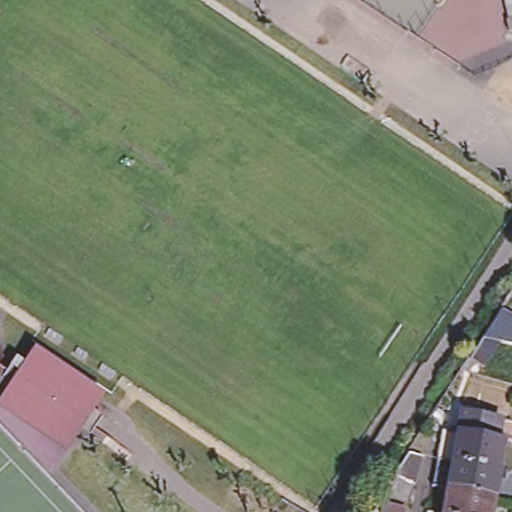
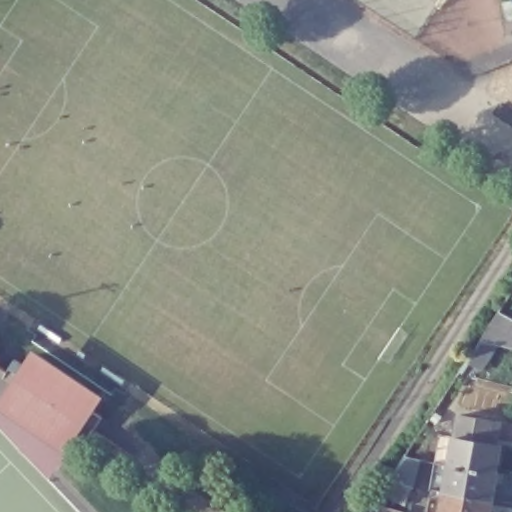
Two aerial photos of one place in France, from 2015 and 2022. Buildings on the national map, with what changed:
unchanged [(505,27),(507,27),(504,9),(512,7),(512,38),(507,39),(505,27)]
unchanged [(512,44),(512,49),(505,50),(504,43),(512,41),(512,44)]
unchanged [(484,338),(484,337),(503,308),(512,314),(512,344),(501,341),(485,367),(470,358),(484,338)]
unchanged [(10,388),(9,390),(0,385),(0,375),(5,367),(19,376),(27,363),(90,402),(80,417),(92,425),(84,438),(72,430),(73,429),(10,388)]
unchanged [(9,390),(10,388),(73,429),(72,430),(60,450),(5,397),(4,397),(9,390)]
unchanged [(60,450),(55,457),(0,422),(0,403),(4,397),(5,397),(60,450)]
unchanged [(444,509),(449,481),(440,481),(435,481),(437,467),(439,453),(444,425),(459,427),(463,406),(500,412),(496,434),(505,435),(500,463),(502,464),(497,490),(492,512),(430,512),(431,507),(444,509)]
unchanged [(415,488),(417,493),(411,507),(385,495),(394,481),(415,488)]

